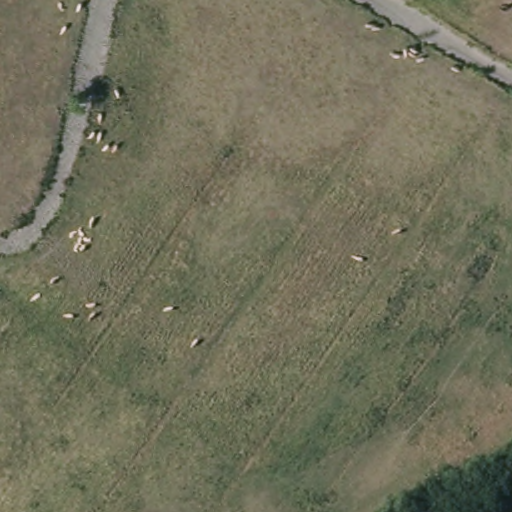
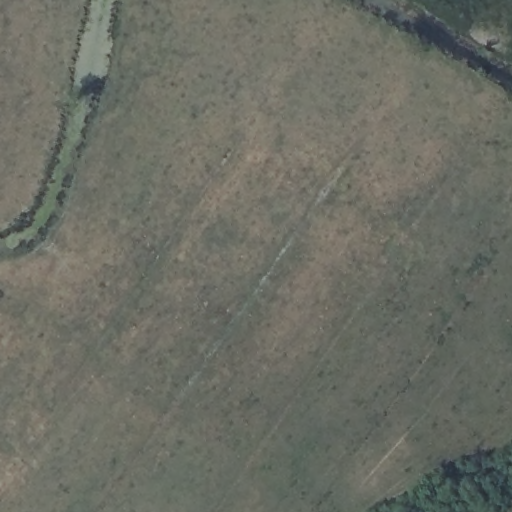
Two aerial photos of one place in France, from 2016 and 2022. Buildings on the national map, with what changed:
[]

